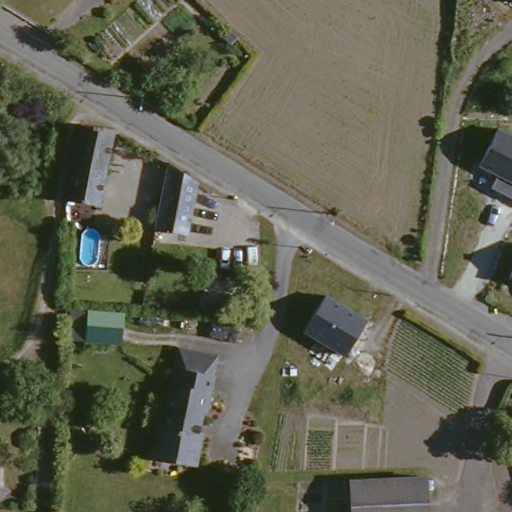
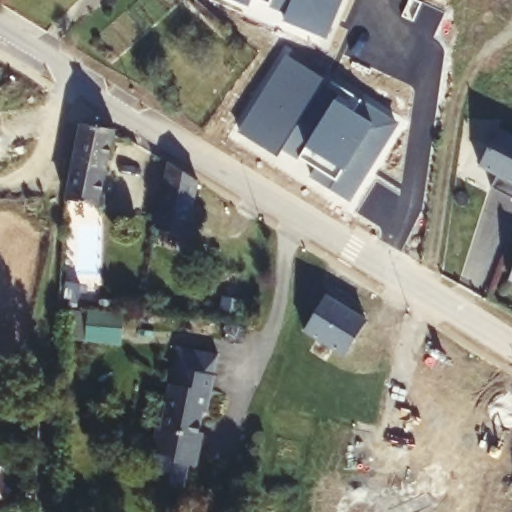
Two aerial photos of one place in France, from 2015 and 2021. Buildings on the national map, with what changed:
new [(246,5),(233,0),(248,0),(246,5)]
new [(322,38),(283,21),(287,12),(258,0),(339,0),(322,38)]
new [(322,78),(323,77),(357,99),(357,100),(393,123),(345,199),(308,176),(314,167),(280,145),(274,154),(238,131),(286,55),(322,78)]
unchanged [(97,207),(67,199),(84,122),(115,131),(97,207)]
unchanged [(512,133),(512,199),(492,189),(497,176),(477,167),(498,126),(512,133)]
unchanged [(185,241),(156,233),(172,172),(198,189),(185,241)]
unchanged [(512,271),(512,282),(507,280),(512,271)]
unchanged [(369,319),(346,358),(302,332),(326,293),(369,319)]
unchanged [(221,296),(239,298),(237,313),(219,311),(221,296)]
unchanged [(114,311),(121,311),(119,341),(85,339),(87,309),(114,311)]
unchanged [(203,425),(197,458),(174,454),(176,449),(153,444),(157,422),(162,422),(174,360),(171,360),(175,339),(217,348),(213,368),(207,405),(203,404),(199,424),(203,425)]
unchanged [(426,478),(427,512),(348,512),(347,482),(426,478)]

